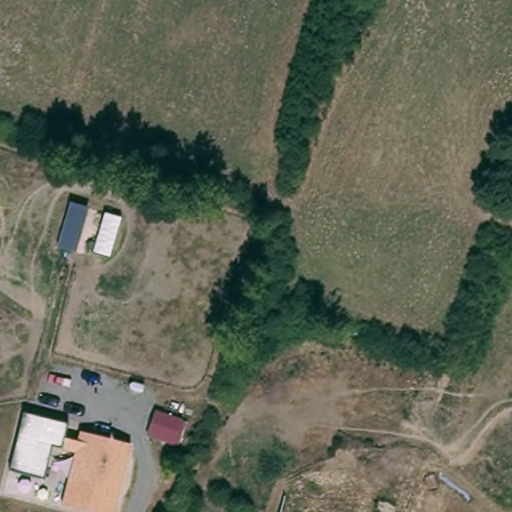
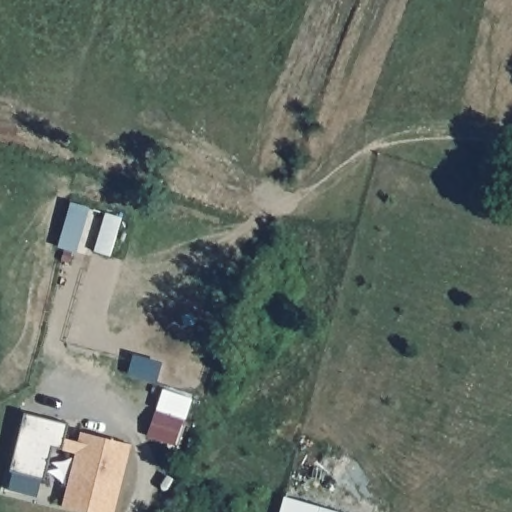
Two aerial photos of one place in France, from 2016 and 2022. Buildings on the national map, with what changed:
unchanged [(62,505),(75,452),(53,447),(44,477),(11,470),(25,413),(68,422),(65,435),(79,438),(81,431),(131,443),(114,512),(97,512),(62,505)]
new [(284,496),(338,512),(280,512),(284,496)]

